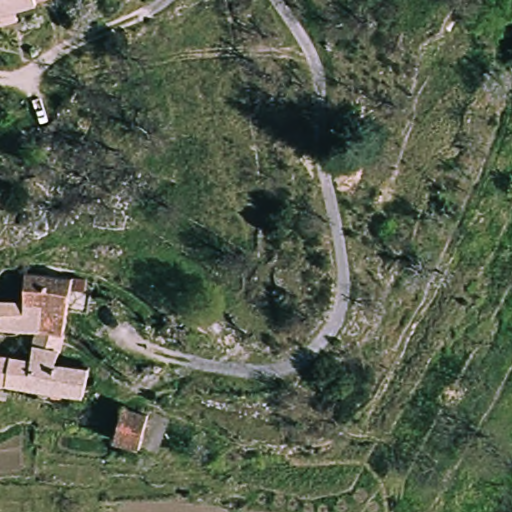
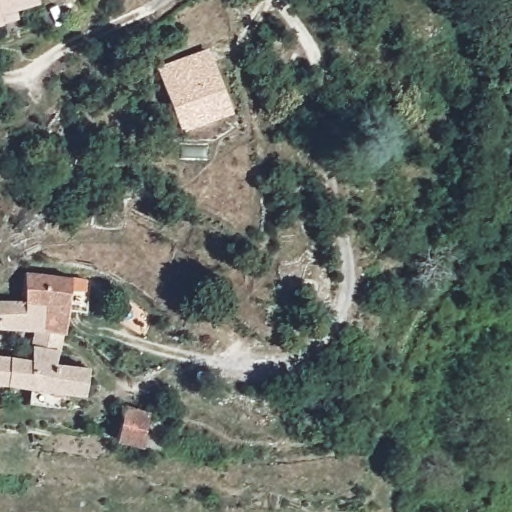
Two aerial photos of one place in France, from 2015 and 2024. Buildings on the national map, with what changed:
unchanged [(0,24),(0,0),(40,0),(13,9),(17,19),(0,24)]
new [(231,113),(180,133),(156,67),(206,48),(231,113)]
unchanged [(24,285),(33,270),(69,276),(88,279),(85,307),(72,305),(68,329),(35,324),(40,299),(21,299),(24,285)]
unchanged [(0,326),(0,301),(21,299),(40,299),(35,324),(19,322),(0,326)]
unchanged [(15,362),(18,356),(31,350),(35,324),(68,329),(64,362),(89,367),(84,396),(11,387),(14,362),(15,362)]
unchanged [(11,387),(0,385),(0,359),(14,362),(11,387)]
unchanged [(119,409),(148,416),(138,445),(115,440),(113,440),(118,414),(119,409)]

